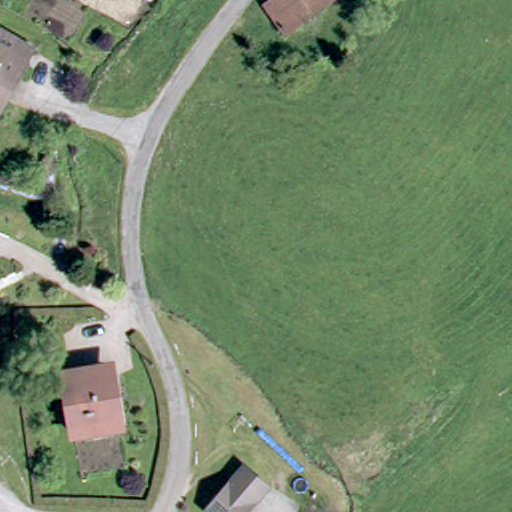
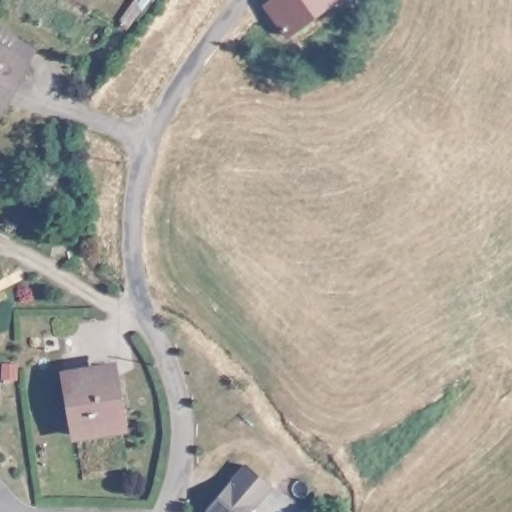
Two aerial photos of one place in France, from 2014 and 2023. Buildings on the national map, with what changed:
unchanged [(257,3),(261,0),(326,0),(281,35),(257,3)]
unchanged [(0,98),(0,27),(32,45),(0,98)]
unchanged [(72,434),(61,373),(107,366),(118,426),(72,434)]
unchanged [(238,472),(262,497),(247,512),(244,512),(240,508),(235,512),(197,512),(238,472)]

